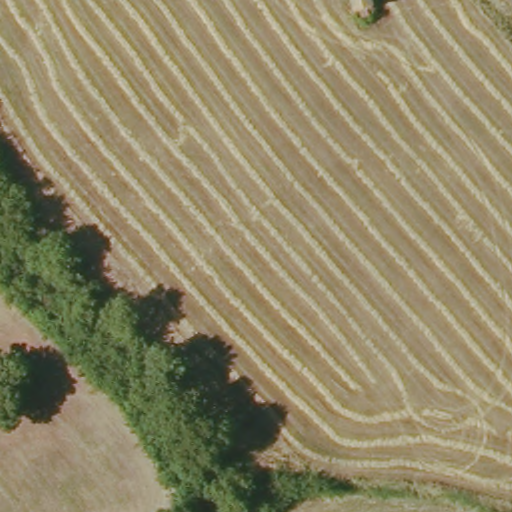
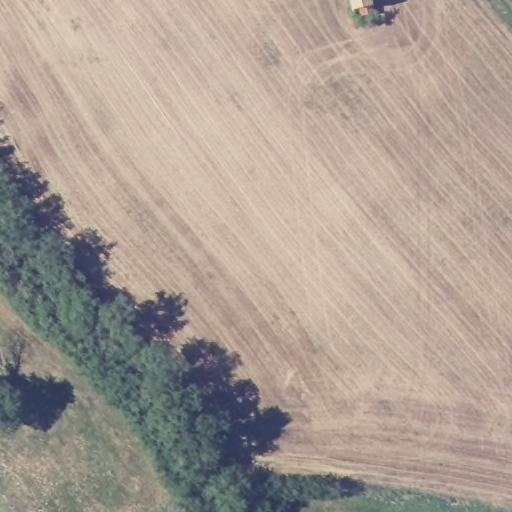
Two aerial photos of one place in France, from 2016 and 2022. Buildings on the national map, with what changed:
unchanged [(353,0),(380,0),(383,9),(358,14),(353,0)]

